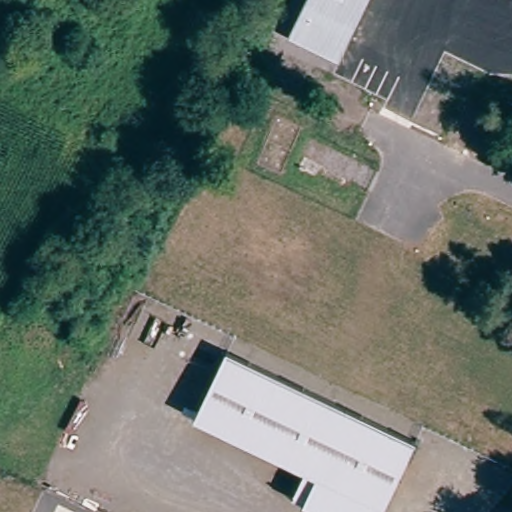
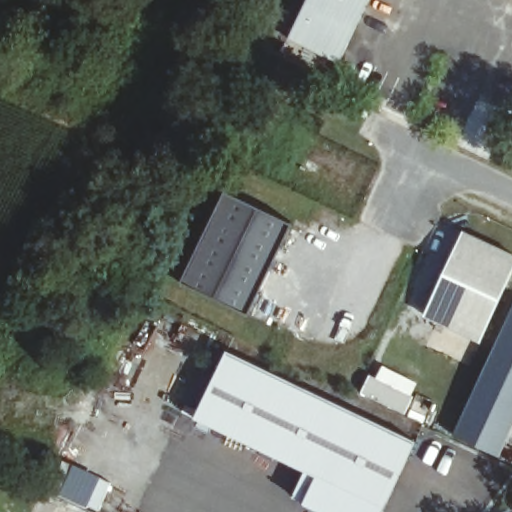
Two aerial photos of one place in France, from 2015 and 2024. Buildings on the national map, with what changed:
unchanged [(369,0),(338,63),(288,38),(307,0),(369,0)]
new [(292,224),(251,314),(182,282),(225,194),(292,224)]
new [(512,277),(482,344),(425,317),(463,231),(512,253),(512,277)]
new [(512,427),(498,457),(451,434),(512,306),(512,427)]
unchanged [(419,443),(386,512),(320,512),(305,505),(318,479),(196,419),(229,351),(419,443)]
new [(368,374),(375,377),(382,364),(418,382),(405,417),(358,394),(368,374)]

